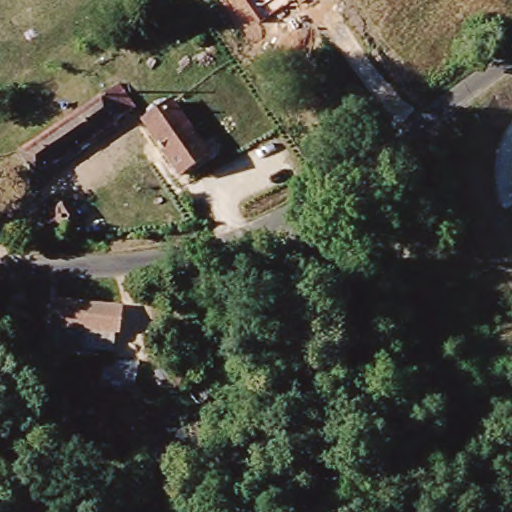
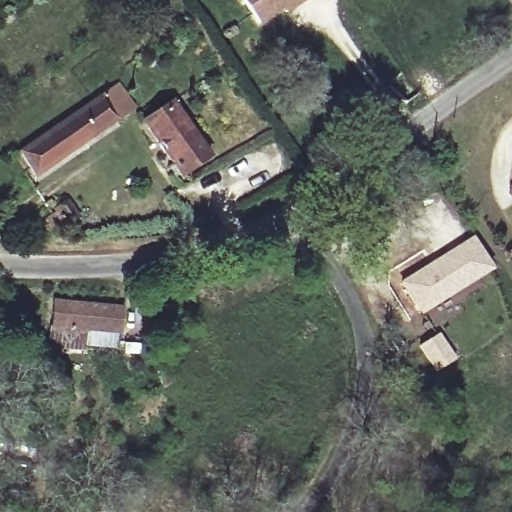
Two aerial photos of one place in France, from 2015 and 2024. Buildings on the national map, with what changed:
unchanged [(245,0),(290,0),(260,21),(245,0)]
unchanged [(39,182),(20,153),(121,87),(140,116),(39,182)]
unchanged [(145,124),(175,105),(208,155),(178,175),(145,124)]
unchanged [(59,212),(57,210),(70,201),(82,220),(70,229),(67,225),(54,234),(45,223),(59,212)]
new [(474,239),(493,269),(475,280),(423,312),(404,282),(457,249),(474,239)]
unchanged [(52,303),(122,304),(122,329),(84,329),(84,348),(50,348),(51,328),(52,303)]
new [(439,334),(454,360),(437,371),(422,345),(439,334)]

